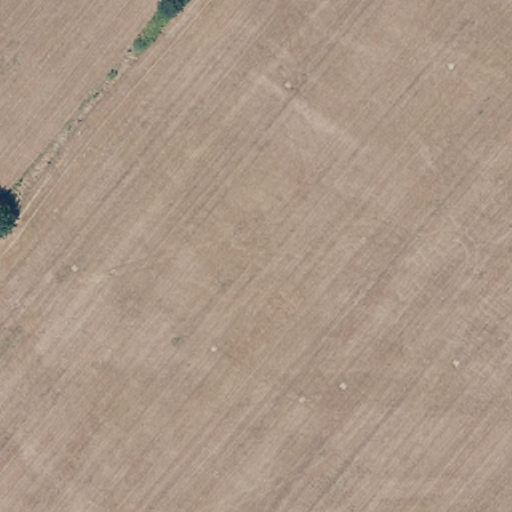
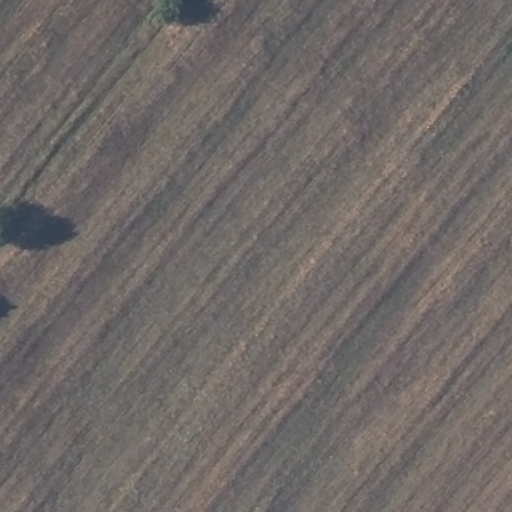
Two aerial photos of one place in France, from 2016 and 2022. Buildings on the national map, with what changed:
[]

